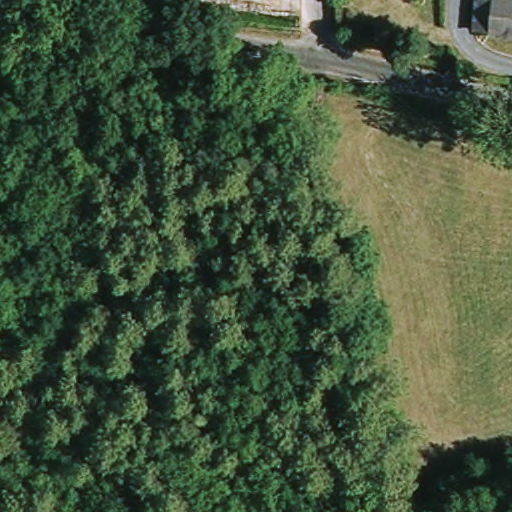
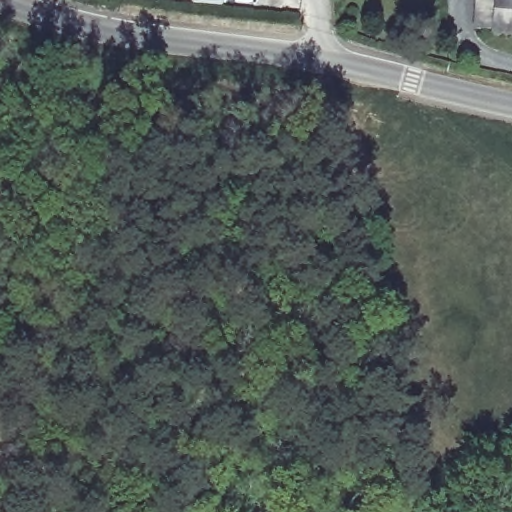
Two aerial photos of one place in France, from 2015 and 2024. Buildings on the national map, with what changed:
unchanged [(490,29),(470,26),(474,0),(512,0),(512,59),(485,55),(490,29)]

